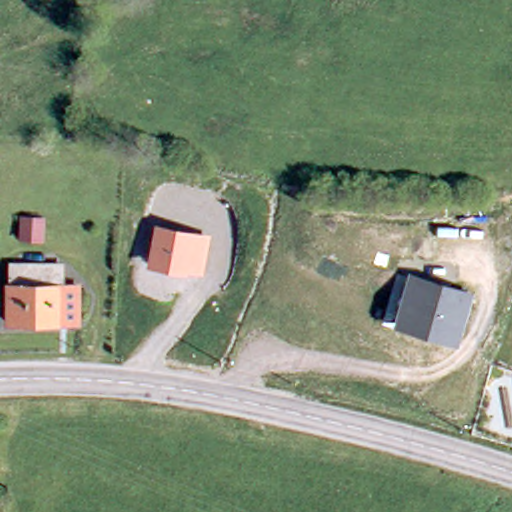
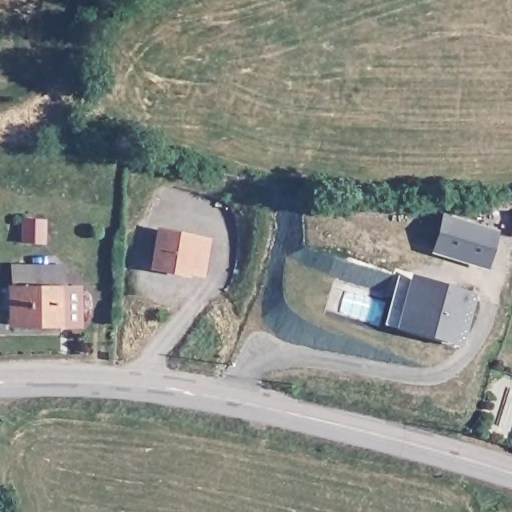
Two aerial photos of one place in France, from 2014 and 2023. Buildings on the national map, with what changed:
new [(441,213),(497,229),(485,270),(428,253),(441,213)]
new [(22,219),(44,219),(43,240),(22,240),(22,219)]
unchanged [(210,236),(202,279),(147,270),(155,227),(210,236)]
unchanged [(12,266),(65,267),(67,288),(79,287),(80,335),(13,328),(12,266)]
unchanged [(477,292),(460,348),(392,327),(408,270),(477,292)]

